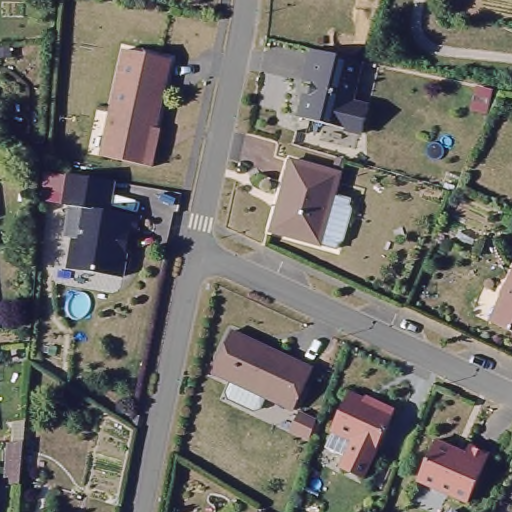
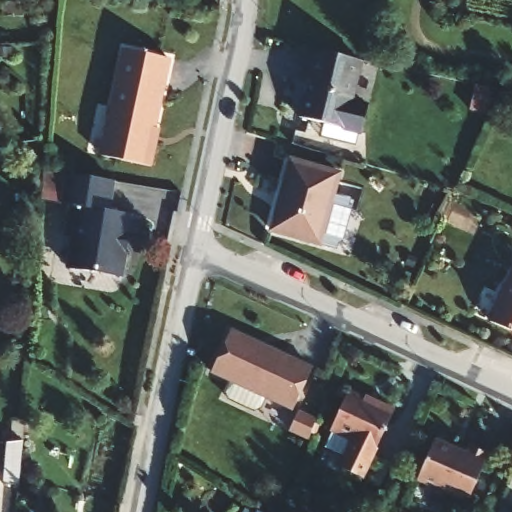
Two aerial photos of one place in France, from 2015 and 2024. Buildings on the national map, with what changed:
unchanged [(361,60),(351,102),(368,106),(361,132),(299,117),(304,97),(309,94),(312,82),(304,80),(311,48),(357,59),(361,60)]
unchanged [(128,50),(173,60),(156,144),(159,145),(155,169),(105,157),(128,50)]
unchanged [(282,210),(286,211),(289,202),(286,201),(295,164),(343,177),(323,247),(275,234),(282,210)]
unchanged [(112,209),(142,213),(139,230),(133,229),(124,234),(123,243),(128,250),(125,273),(73,265),(78,235),(69,234),(73,203),(66,202),(70,170),(116,178),(112,209)]
unchanged [(503,303),(505,297),(504,293),(509,283),(512,282),(512,329),(494,321),(503,303)]
unchanged [(281,403),(228,378),(247,337),(311,367),(291,409),(281,403)]
unchanged [(329,429),(348,391),(373,403),(374,400),(393,409),(374,450),(329,429)]
unchanged [(9,422),(21,420),(20,442),(16,485),(1,483),(4,444),(8,443),(9,422)]
unchanged [(421,483),(439,444),(469,457),(473,450),(493,458),(471,506),(421,483)]
unchanged [(258,510),(260,512),(256,512),(258,510)]

